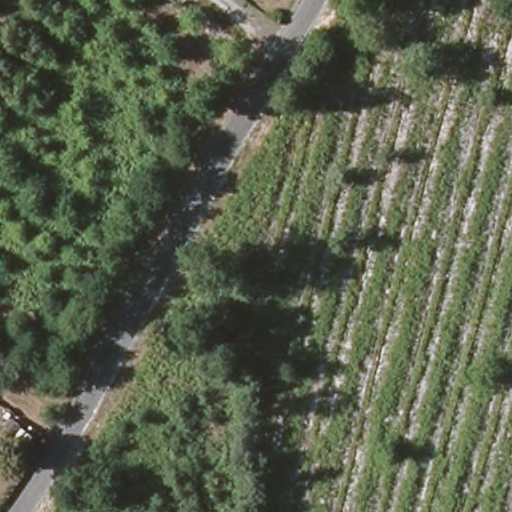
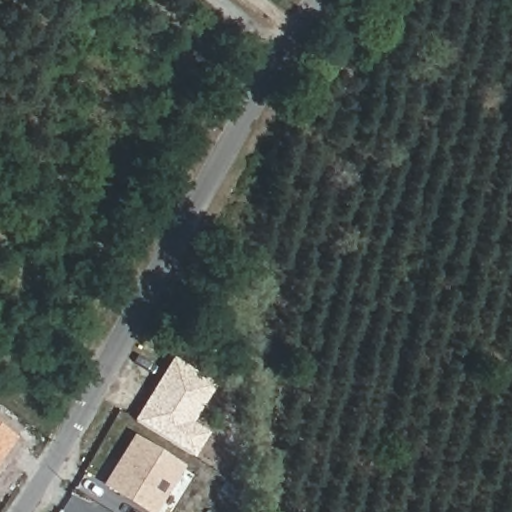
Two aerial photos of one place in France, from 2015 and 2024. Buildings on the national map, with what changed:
new [(171,356),(215,384),(192,421),(207,433),(192,457),(132,420),(171,356)]
new [(16,438),(0,459),(0,425),(16,438)]
new [(135,438),(180,467),(152,512),(151,512),(106,484),(135,438)]

